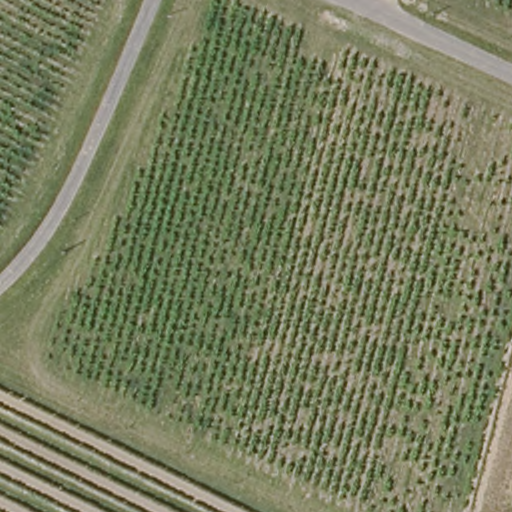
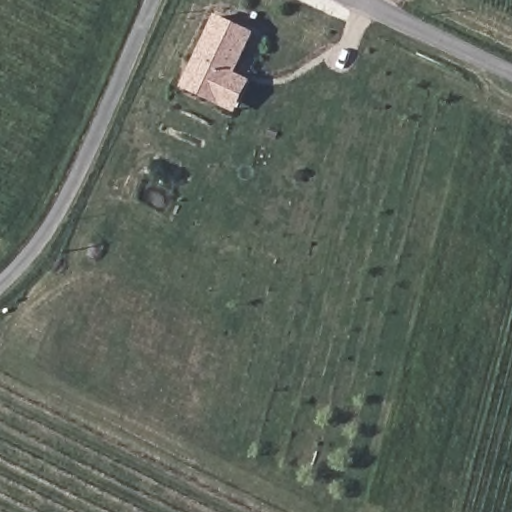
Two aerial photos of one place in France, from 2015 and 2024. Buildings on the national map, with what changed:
new [(255,37),(222,106),(187,90),(220,21),(255,37)]
new [(251,85),(237,113),(222,106),(236,77),(251,85)]

